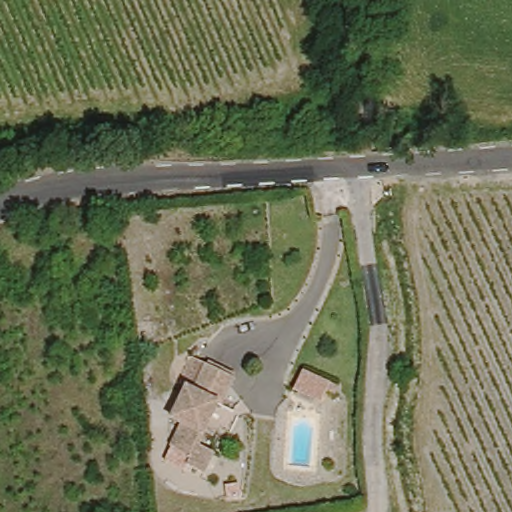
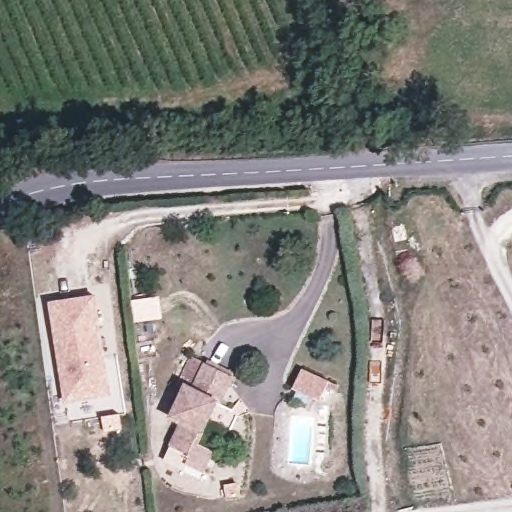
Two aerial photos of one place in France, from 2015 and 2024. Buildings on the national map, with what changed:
new [(111,396),(64,403),(48,301),(96,295),(111,396)]
unchanged [(176,420),(166,417),(180,386),(187,389),(198,361),(226,372),(214,401),(211,400),(193,441),(209,448),(200,470),(183,463),(187,453),(167,444),(176,420)]

